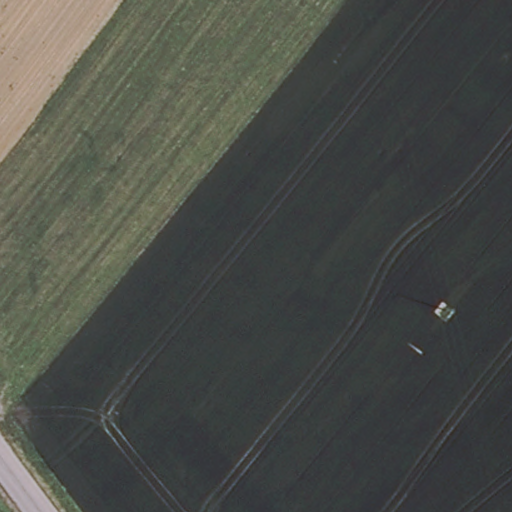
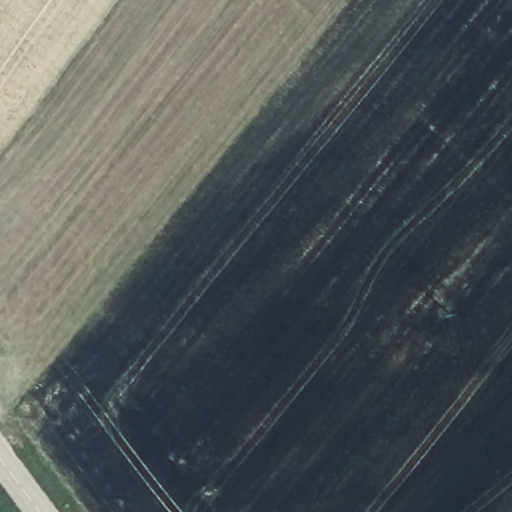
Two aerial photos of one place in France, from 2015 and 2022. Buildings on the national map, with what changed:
[]

